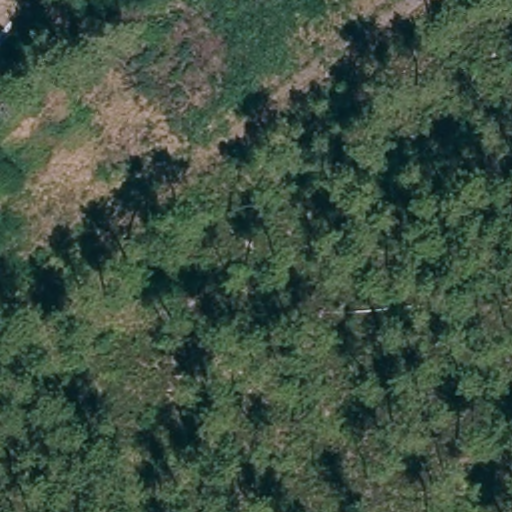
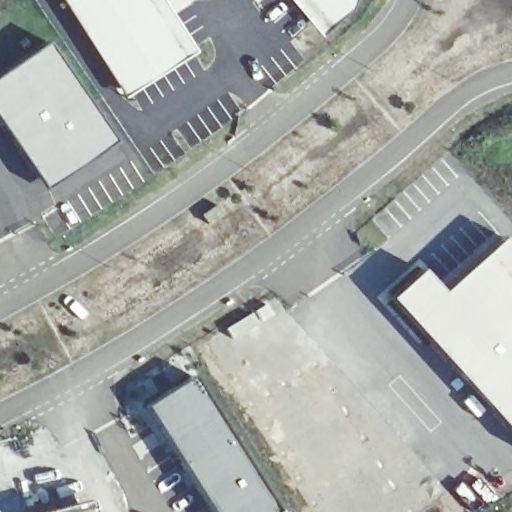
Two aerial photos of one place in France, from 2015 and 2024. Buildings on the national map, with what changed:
new [(194,51),(122,98),(59,0),(162,0),(194,51)]
new [(347,10),(318,35),(287,0),(351,0),(347,10)]
new [(111,140),(41,189),(0,128),(0,72),(44,42),(111,140)]
new [(440,291),(501,235),(512,247),(512,435),(388,299),(420,271),(440,291)]
new [(213,512),(143,406),(190,376),(279,512),(213,512)]
new [(91,512),(36,512),(88,498),(91,512)]

